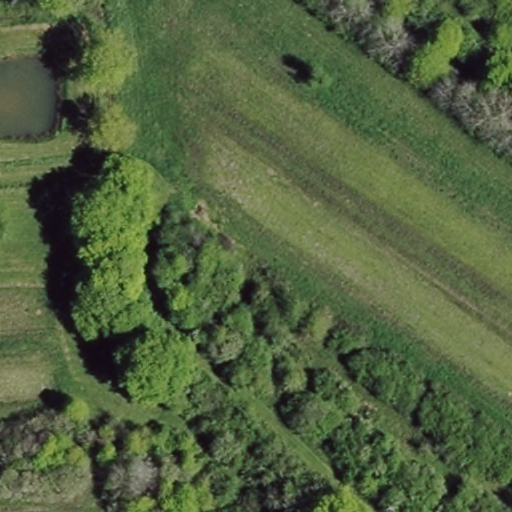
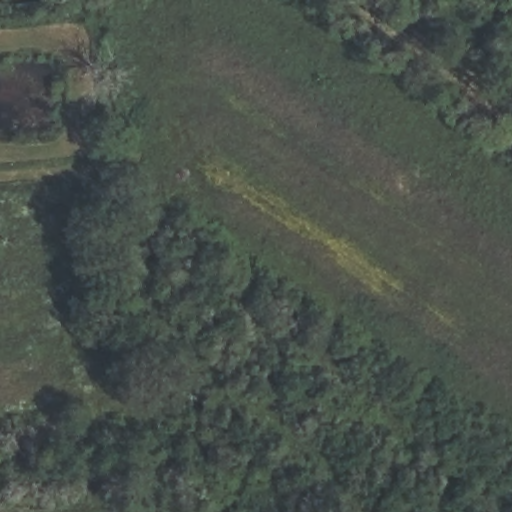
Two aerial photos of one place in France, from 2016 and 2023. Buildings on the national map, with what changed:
unchanged [(68,0),(73,0),(72,2),(68,0)]

